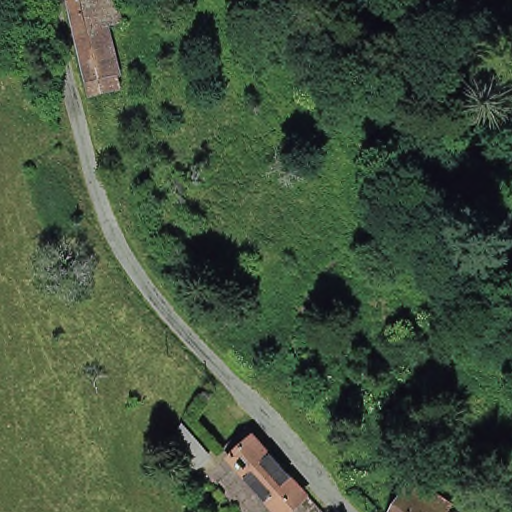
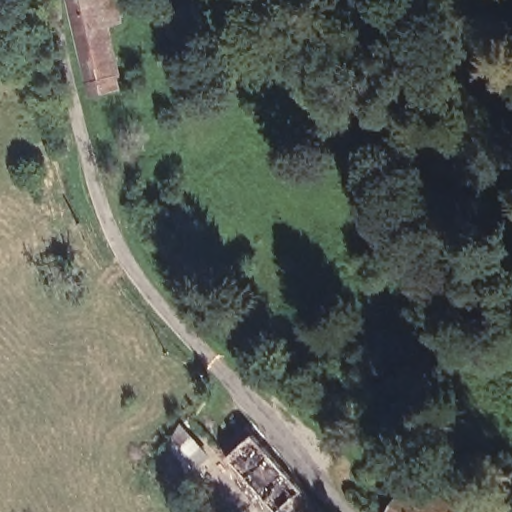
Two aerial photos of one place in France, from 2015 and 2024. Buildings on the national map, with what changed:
unchanged [(85,87),(83,81),(85,80),(76,48),(72,30),(70,30),(64,2),(75,1),(77,0),(118,0),(112,2),(118,27),(103,31),(105,41),(118,95),(89,102),(86,87),(85,87)]
unchanged [(178,428),(206,457),(188,475),(165,447),(178,428)]
unchanged [(251,430),(301,486),(275,509),(225,452),(251,430)]
unchanged [(406,481),(453,512),(386,512),(406,481)]

